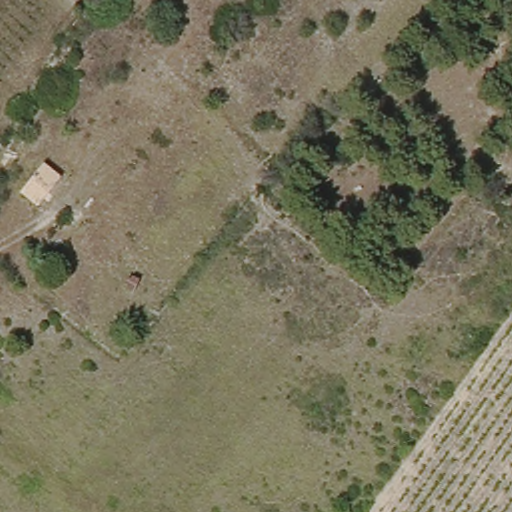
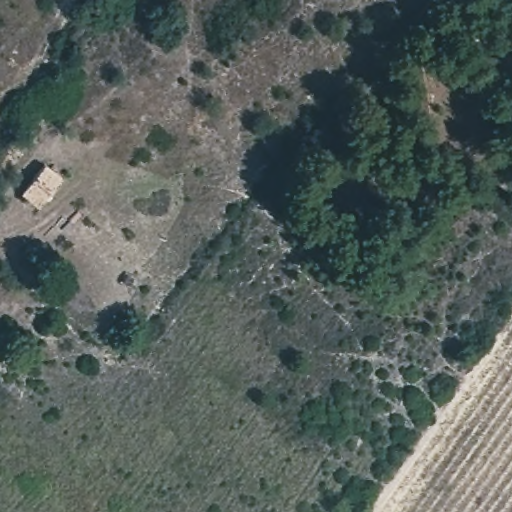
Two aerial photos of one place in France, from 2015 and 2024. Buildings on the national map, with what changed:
unchanged [(35,216),(16,201),(40,173),(57,187),(35,216)]

